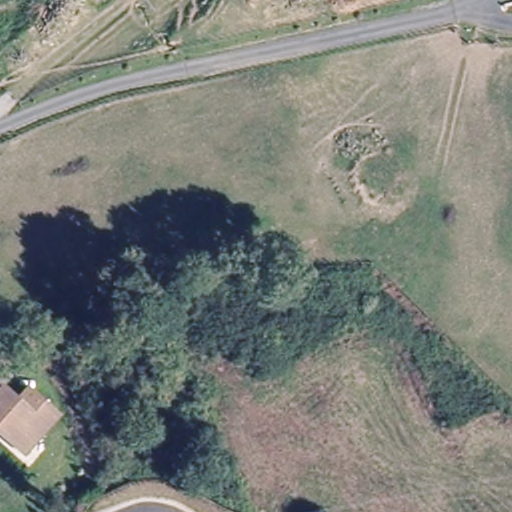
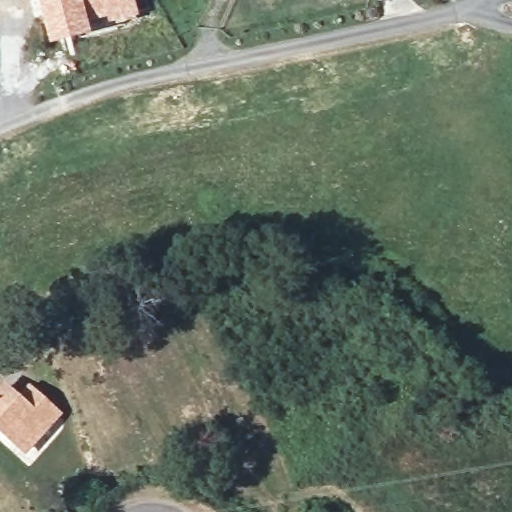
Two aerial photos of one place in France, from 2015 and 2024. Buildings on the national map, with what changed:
new [(93,32),(49,44),(38,0),(85,0),(93,32)]
new [(141,16),(93,32),(85,0),(136,0),(141,16)]
unchanged [(0,393),(1,392),(16,405),(28,392),(54,417),(32,440),(20,453),(5,439),(0,435),(0,393)]

